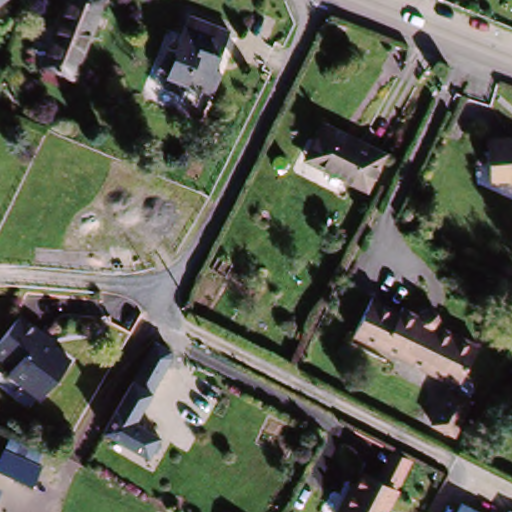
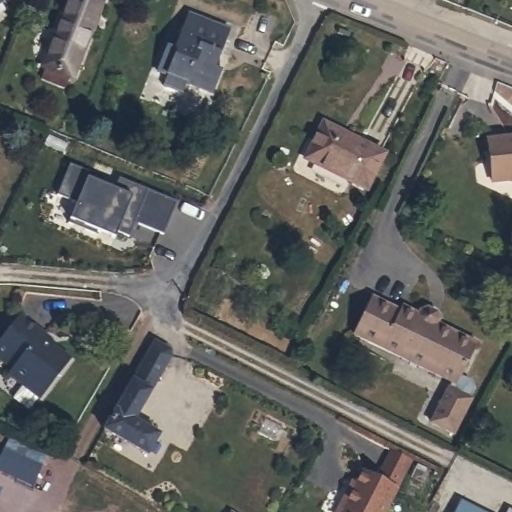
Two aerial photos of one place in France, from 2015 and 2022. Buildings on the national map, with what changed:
unchanged [(0,4),(0,0),(5,0),(0,4)]
unchanged [(39,72),(43,60),(41,59),(66,0),(98,0),(96,5),(98,6),(90,25),(88,24),(68,70),(66,69),(61,81),(39,72)]
unchanged [(227,33),(211,72),(218,75),(210,97),(185,88),(180,98),(161,91),(165,80),(155,76),(165,51),(173,54),(187,18),(227,33)]
unchanged [(296,163),(305,145),(315,128),(374,157),(356,192),(303,166),(296,163)]
unchanged [(512,186),(505,183),(488,186),(482,143),(512,139),(512,186)]
new [(90,174),(89,181),(117,191),(120,181),(177,204),(164,235),(136,225),(130,238),(115,234),(114,237),(70,221),(76,205),(57,199),(70,168),(90,174)]
unchanged [(405,309),(407,305),(423,313),(425,310),(433,307),(442,312),(445,319),(442,323),(482,343),(465,377),(474,382),(476,388),(471,398),(475,400),(456,434),(434,422),(455,383),(357,332),(376,295),(405,309)]
unchanged [(12,370),(0,359),(0,342),(20,317),(47,339),(43,344),(52,351),(55,349),(70,362),(40,400),(8,375),(12,370)]
unchanged [(150,346),(163,354),(165,358),(165,360),(127,424),(151,438),(140,457),(98,432),(150,346)]
unchanged [(38,495),(0,477),(9,458),(14,447),(47,462),(42,473),(47,475),(38,495)]
unchanged [(340,509),(355,478),(370,486),(386,456),(405,465),(390,495),(381,512),(333,512),(336,507),(340,509)]
unchanged [(483,512),(465,512),(468,505),(483,512)]

